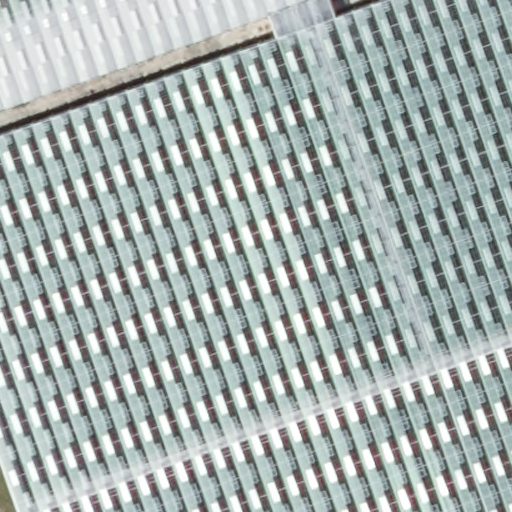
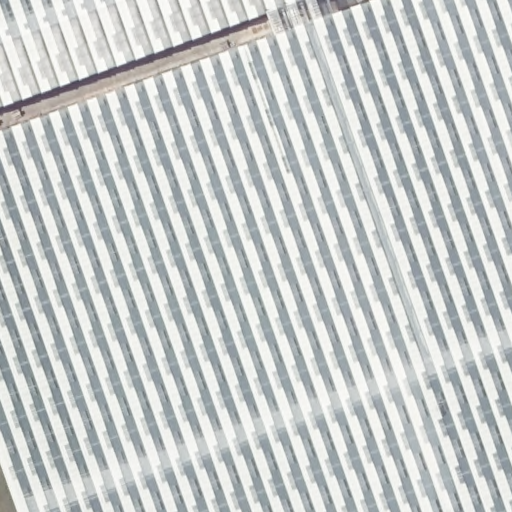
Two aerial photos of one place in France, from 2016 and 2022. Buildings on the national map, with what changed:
unchanged [(277,4),(0,105),(0,0),(288,0),(277,4)]
unchanged [(295,23),(342,6),(359,0),(512,0),(512,512),(36,512),(0,411),(0,130),(285,26),(295,23)]
unchanged [(285,26),(280,12),(277,4),(288,0),(340,0),(342,6),(295,23),(285,26)]

